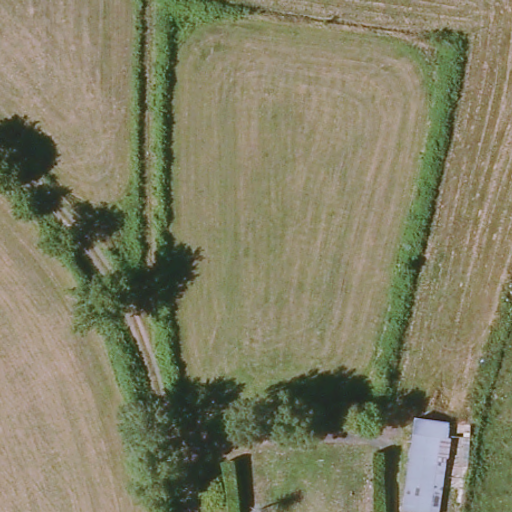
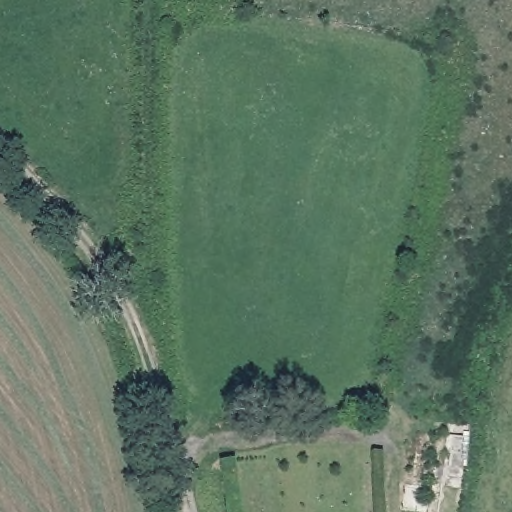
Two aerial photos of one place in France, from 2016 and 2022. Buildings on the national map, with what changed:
demolished [(445,512),(421,512),(409,511),(418,420),(457,425),(445,512)]

